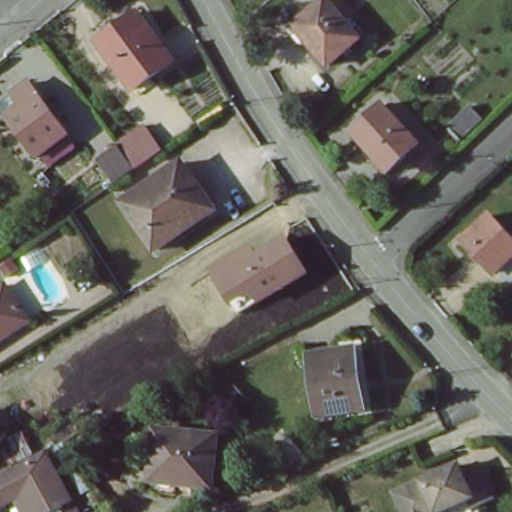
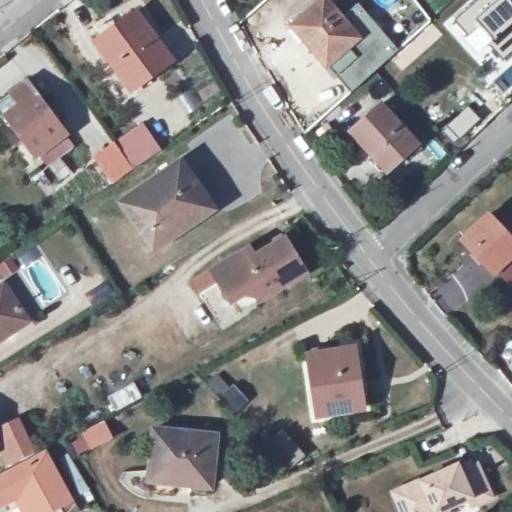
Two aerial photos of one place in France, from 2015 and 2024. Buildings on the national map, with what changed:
unchanged [(307,41),(309,40),(295,24),(323,0),(324,0),(357,39),(327,65),(307,41)]
new [(512,0),(512,51),(503,59),(490,44),(478,58),(453,29),(455,27),(450,21),(452,19),(450,17),(468,0),(512,0)]
unchanged [(133,88),(99,40),(134,14),(169,63),(133,88)]
unchanged [(37,152),(6,111),(19,101),(11,90),(27,79),(65,130),(37,152)]
unchanged [(385,169),(353,133),(383,106),(416,143),(385,169)]
unchanged [(460,139),(447,125),(469,106),(482,120),(460,139)]
unchanged [(135,169),(118,144),(144,126),(161,150),(135,169)]
unchanged [(175,235),(153,250),(121,203),(180,163),(206,201),(212,210),(175,235)]
unchanged [(462,239),(489,215),(512,240),(512,256),(494,273),(462,239)]
unchanged [(312,275),(264,304),(247,299),(232,307),(209,269),(253,244),(257,253),(287,236),(312,275)]
unchanged [(18,311),(14,314),(11,324),(16,333),(0,342),(0,287),(3,285),(18,311)]
unchanged [(317,414),(309,355),(353,349),(361,409),(317,414)]
new [(112,439),(92,449),(84,433),(104,424),(112,439)]
unchanged [(149,474),(153,431),(215,437),(210,488),(188,486),(148,482),(149,474)]
unchanged [(14,498),(0,504),(0,477),(45,454),(71,499),(46,512),(22,512),(14,498)]
unchanged [(392,493),(401,489),(398,484),(409,479),(411,484),(454,464),(456,469),(473,463),(489,493),(466,506),(463,499),(436,512),(400,512),(392,493)]

